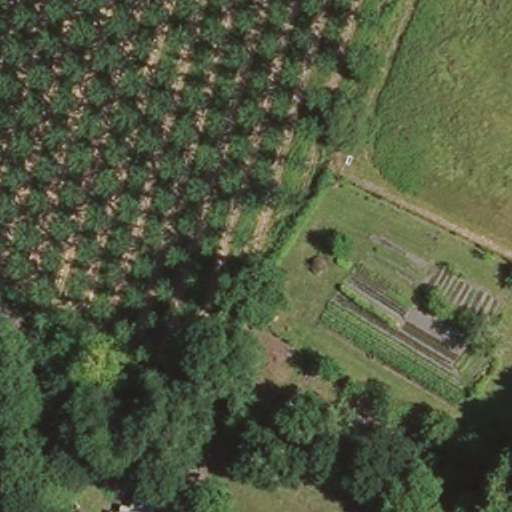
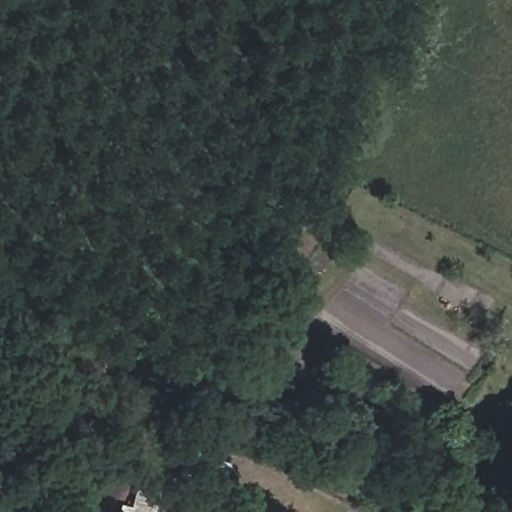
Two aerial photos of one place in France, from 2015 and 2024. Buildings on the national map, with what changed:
[]

